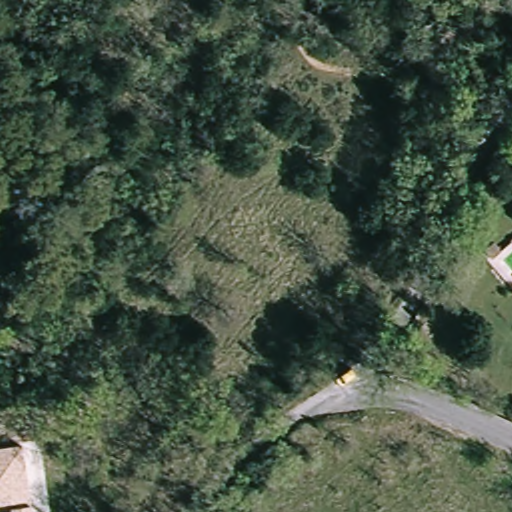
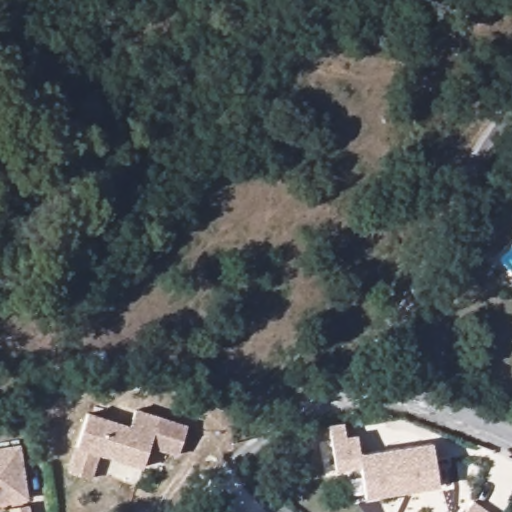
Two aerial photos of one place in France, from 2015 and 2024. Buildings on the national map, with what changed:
new [(91,412),(132,426),(137,409),(186,427),(178,454),(151,445),(145,466),(102,451),(95,476),(76,470),(91,412)]
new [(432,443),(439,488),(366,498),(361,469),(334,470),(329,427),(344,425),(346,436),(357,436),(360,453),(432,443)]
unchanged [(29,499),(0,503),(0,448),(20,445),(29,499)]
new [(489,511),(490,512),(466,512),(474,501),(489,511)]
unchanged [(33,512),(11,512),(10,509),(32,505),(33,512)]

